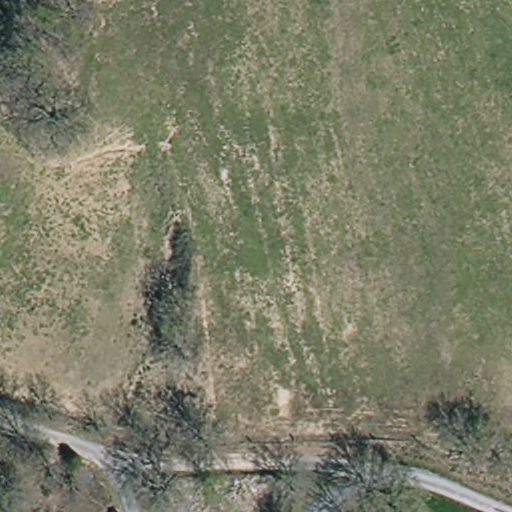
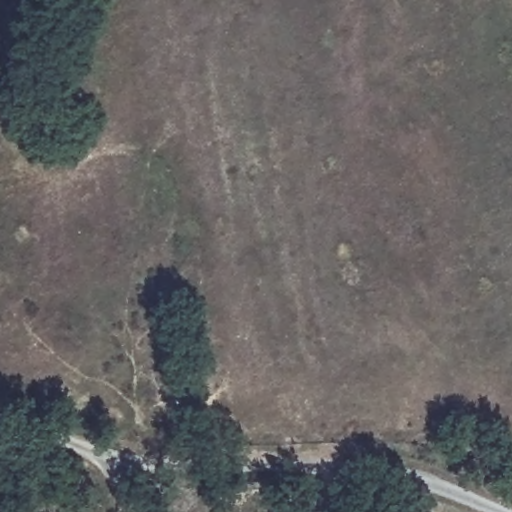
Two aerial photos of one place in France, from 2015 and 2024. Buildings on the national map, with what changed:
[]

